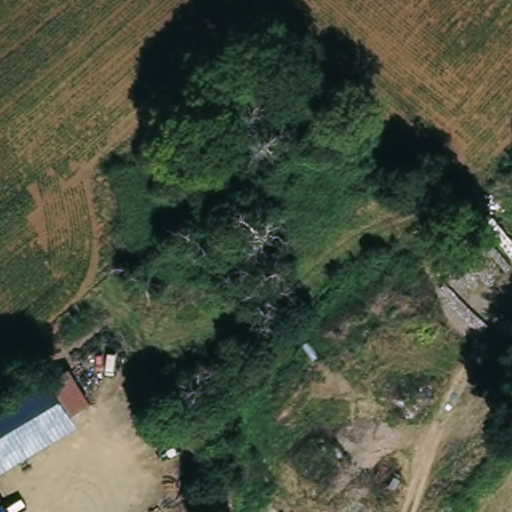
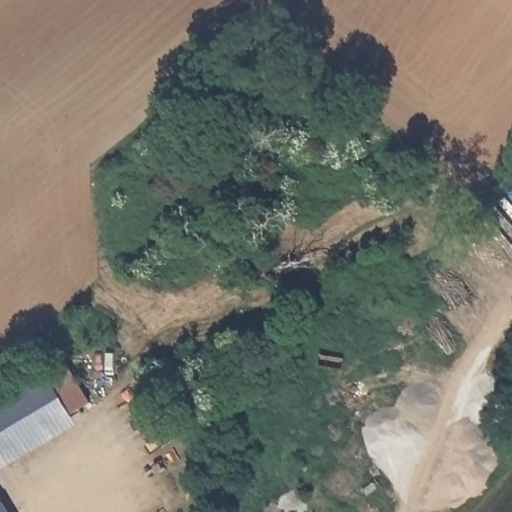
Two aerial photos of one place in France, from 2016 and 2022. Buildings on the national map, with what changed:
unchanged [(52,372),(57,381),(78,369),(97,402),(77,414),(0,459),(0,403),(52,372)]
unchanged [(16,512),(0,512),(0,484),(16,512)]

